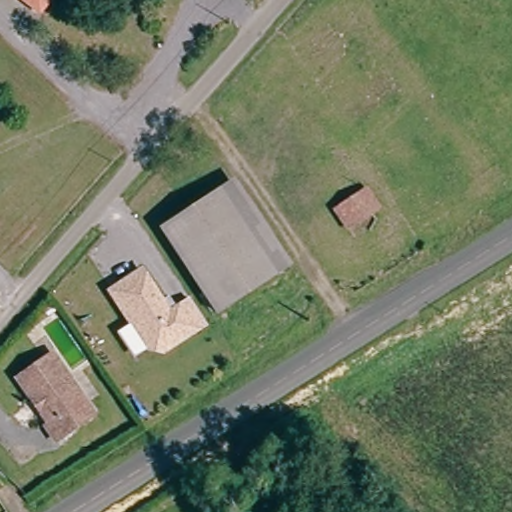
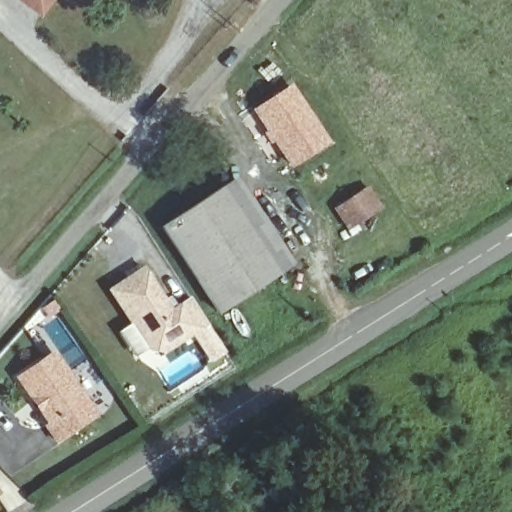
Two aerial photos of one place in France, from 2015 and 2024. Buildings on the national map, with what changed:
unchanged [(32,8),(23,0),(39,0),(32,8)]
new [(291,83),(332,142),(291,170),(251,110),(291,83)]
unchanged [(236,183),(268,232),(292,269),(281,276),(258,242),(225,191),(236,183)]
unchanged [(335,211),(370,189),(383,210),(344,229),(335,211)]
unchanged [(258,242),(281,276),(218,317),(206,299),(162,231),(225,191),(258,242)]
unchanged [(122,331),(134,323),(112,289),(143,269),(164,301),(169,298),(176,309),(191,299),(195,305),(206,322),(164,349),(156,348),(149,346),(137,354),(122,331)]
unchanged [(25,390),(16,377),(50,353),(91,412),(72,425),(53,439),(43,425),(47,422),(38,409),(30,398),(25,390)]

